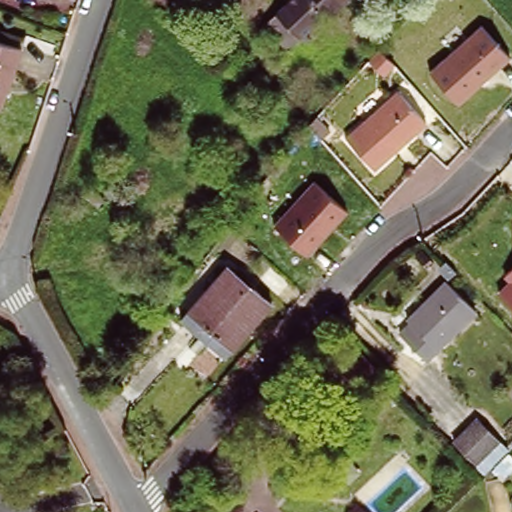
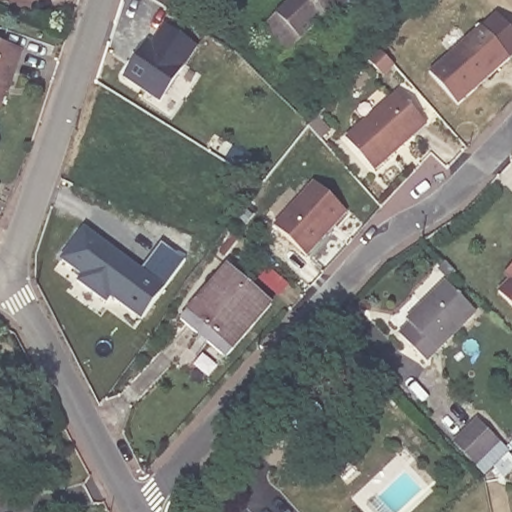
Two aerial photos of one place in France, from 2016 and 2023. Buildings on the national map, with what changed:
unchanged [(156,0),(171,0),(167,7),(156,0)]
unchanged [(272,10),(282,0),(338,0),(324,13),(322,11),(297,35),(285,46),(260,21),(272,10)]
new [(161,101),(124,79),(148,40),(153,43),(166,24),(200,47),(161,101)]
unchanged [(429,73),(482,26),(511,60),(459,107),(429,73)]
unchanged [(4,87),(0,100),(0,44),(19,50),(7,88),(4,87)]
unchanged [(374,172),(344,139),(398,91),(428,125),(374,172)]
unchanged [(348,213),(307,257),(273,226),(313,181),(348,213)]
new [(142,318),(112,297),(108,302),(79,282),(84,276),(61,260),(85,226),(145,270),(162,242),(185,258),(142,318)]
unchanged [(272,301),(226,354),(182,315),(228,262),(272,301)]
unchanged [(508,282),(502,276),(512,266),(512,307),(497,292),(508,282)]
unchanged [(476,308),(437,346),(408,315),(447,277),(476,308)]
unchanged [(349,395),(369,418),(356,428),(337,406),(349,395)]
unchanged [(478,421),(500,442),(476,466),(455,443),(478,421)]
unchanged [(512,456),(512,469),(505,477),(496,467),(510,453),(512,456)]

